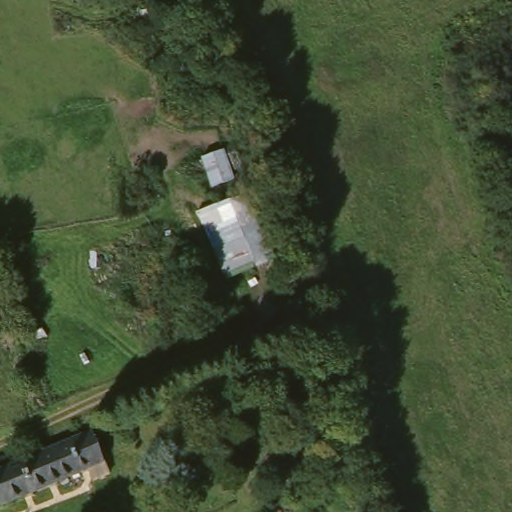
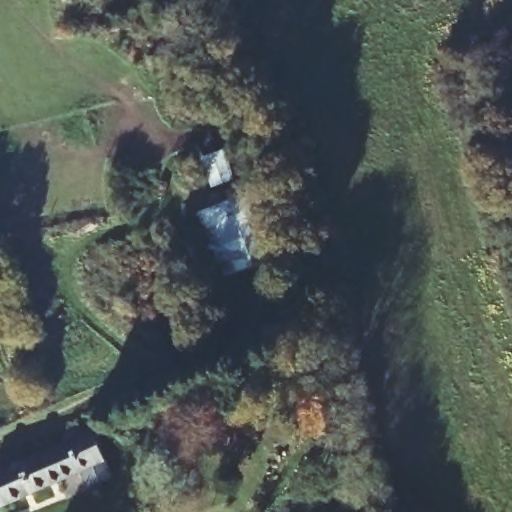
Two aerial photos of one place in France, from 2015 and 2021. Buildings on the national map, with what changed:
unchanged [(198,207),(256,187),(286,252),(230,273),(198,207)]
unchanged [(94,472),(91,469),(7,504),(0,488),(0,475),(5,472),(2,466),(23,457),(26,465),(62,450),(99,435),(113,464),(94,472)]
unchanged [(253,476),(262,488),(236,502),(229,490),(253,476)]

